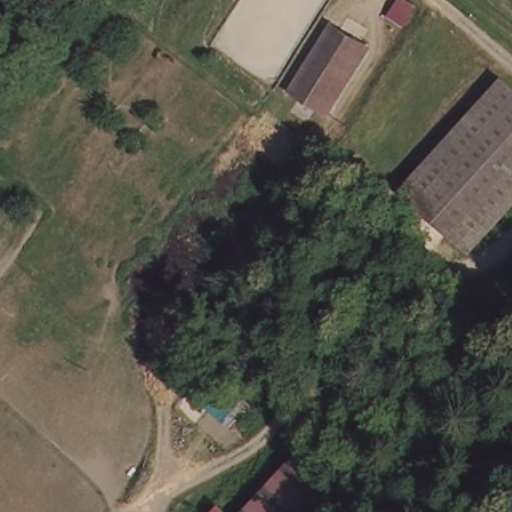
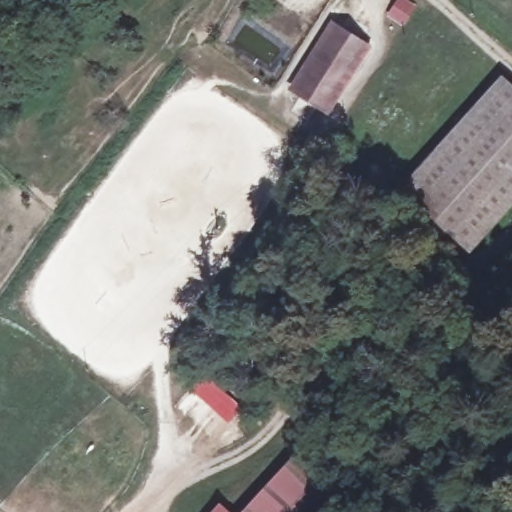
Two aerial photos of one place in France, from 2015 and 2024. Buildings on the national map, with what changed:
unchanged [(325,114),(291,90),(331,30),(365,52),(325,114)]
unchanged [(391,194),(496,84),(512,98),(512,200),(458,256),(391,194)]
unchanged [(351,493),(332,512),(239,512),(293,450),(351,493)]
unchanged [(234,512),(204,512),(215,497),(234,512)]

